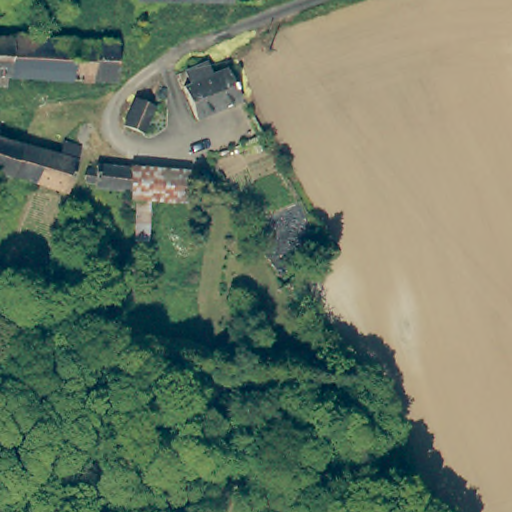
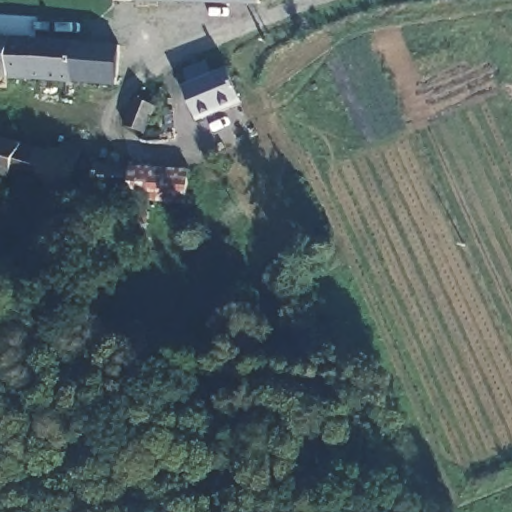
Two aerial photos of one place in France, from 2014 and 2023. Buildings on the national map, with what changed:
unchanged [(130,1),(129,0),(223,0),(130,1)]
unchanged [(64,78),(0,75),(0,31),(34,32),(66,34),(64,78)]
unchanged [(111,37),(110,82),(64,78),(66,34),(111,37)]
unchanged [(177,86),(190,79),(186,71),(206,63),(209,70),(222,64),(240,95),(189,116),(177,86)]
unchanged [(116,122),(114,120),(129,91),(151,102),(136,130),(134,130),(116,122)]
unchanged [(0,175),(0,139),(20,144),(13,167),(10,178),(0,175)]
unchanged [(56,155),(59,143),(77,149),(64,194),(27,183),(10,178),(13,167),(20,144),(56,155)]
unchanged [(131,193),(92,188),(93,178),(81,177),(83,162),(95,164),(95,160),(134,165),(131,193)]
unchanged [(134,165),(188,171),(184,203),(130,196),(131,193),(134,165)]

